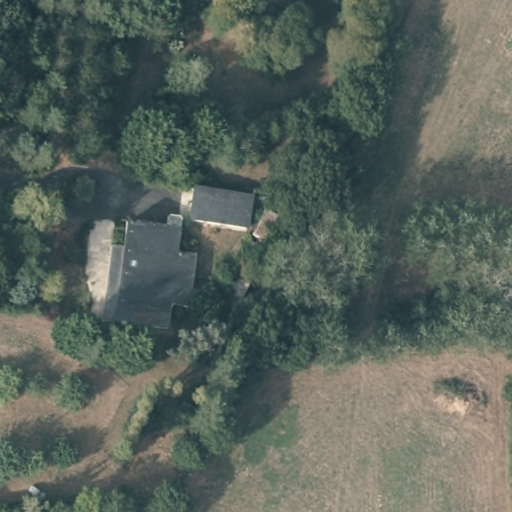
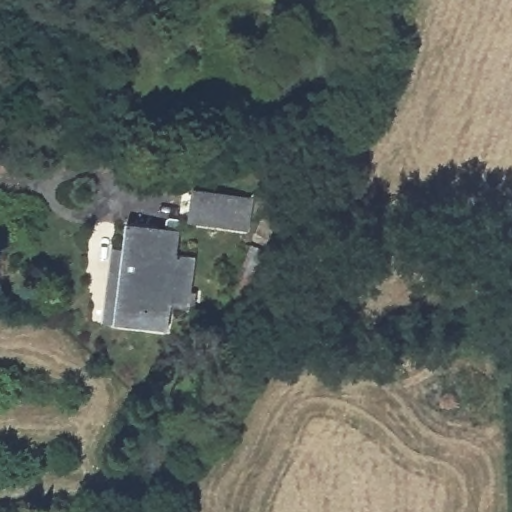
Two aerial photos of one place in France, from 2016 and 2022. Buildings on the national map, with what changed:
unchanged [(195,184),(258,193),(252,230),(220,225),(189,221),(195,184)]
unchanged [(116,247),(126,248),(129,222),(180,230),(179,251),(197,254),(192,290),(197,291),(195,302),(190,306),(171,304),(168,330),(117,324),(106,322),(116,247)]

